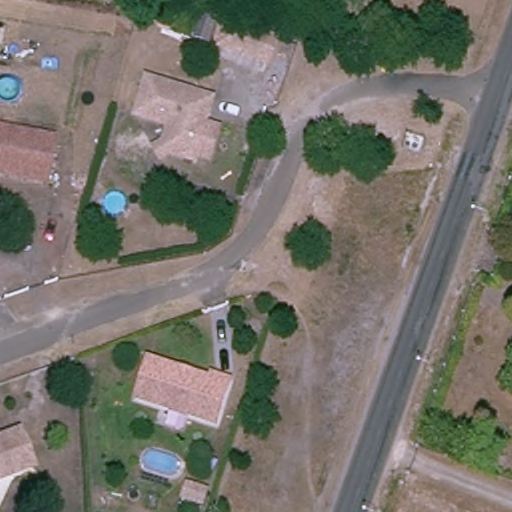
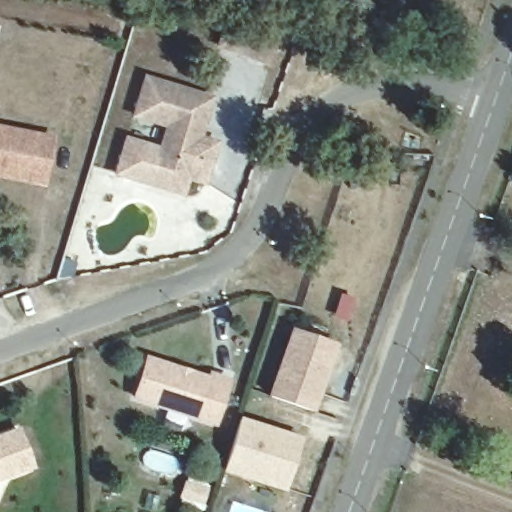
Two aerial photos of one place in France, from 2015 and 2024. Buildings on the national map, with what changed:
unchanged [(256,61),(226,50),(208,42),(217,19),(234,26),(265,37),(256,61)]
new [(161,140),(166,122),(133,111),(145,75),(181,86),(210,96),(205,111),(198,133),(221,141),(208,184),(188,185),(184,197),(114,174),(126,136),(152,144),(161,140)]
demolished [(176,101),(205,111),(190,157),(166,150),(161,140),(166,122),(133,111),(145,75),(181,86),(176,101)]
unchanged [(0,129),(52,140),(44,181),(43,185),(0,177),(0,129)]
new [(315,412),(269,397),(293,328),(339,346),(315,412)]
unchanged [(134,395),(146,357),(176,366),(188,370),(208,376),(209,372),(226,377),(213,420),(134,395)]
new [(224,473),(241,417),(304,437),(286,493),(224,473)]
unchanged [(32,464),(0,476),(0,434),(19,427),(32,464)]

